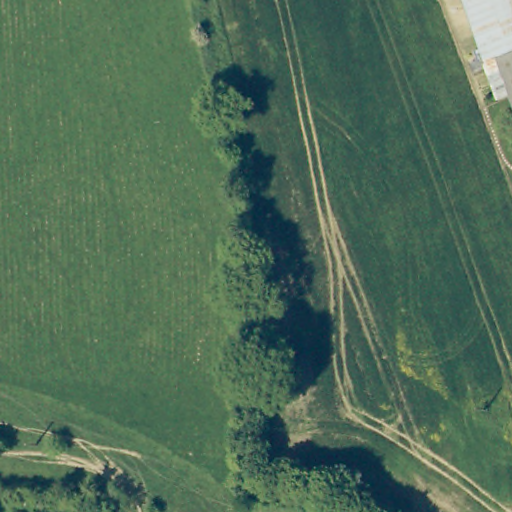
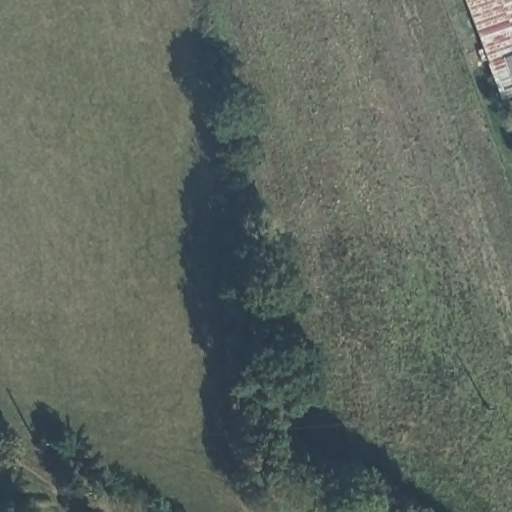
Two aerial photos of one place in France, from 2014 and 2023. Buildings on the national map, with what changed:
unchanged [(485,103),(448,0),(512,0),(512,120),(507,122),(498,99),(485,103)]
unchanged [(512,120),(512,136),(507,122),(512,120)]

